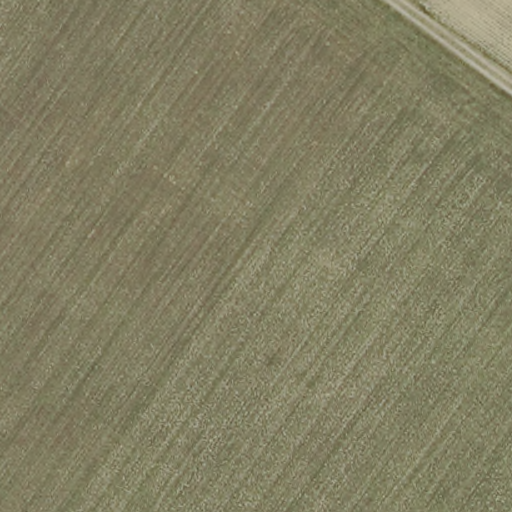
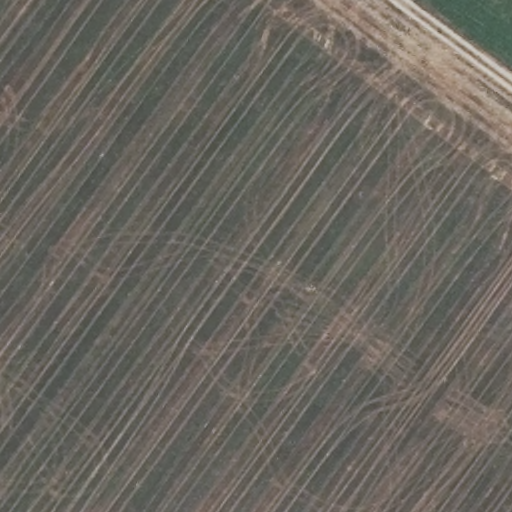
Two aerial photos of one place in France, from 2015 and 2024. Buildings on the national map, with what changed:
[]

